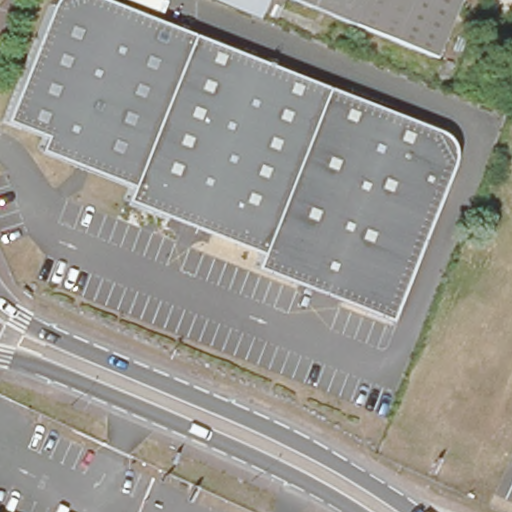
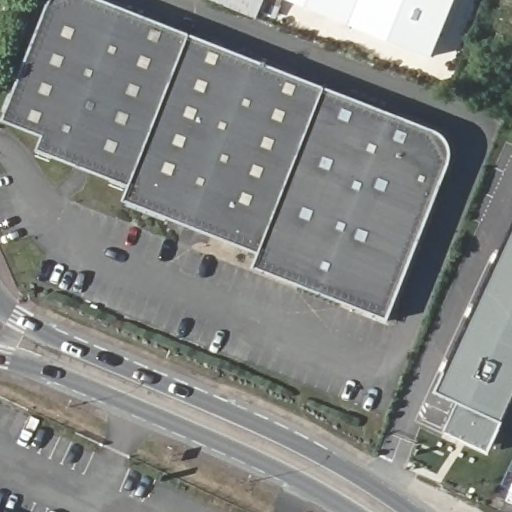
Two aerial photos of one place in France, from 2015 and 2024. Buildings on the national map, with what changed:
unchanged [(440,133),(444,136),(448,140),(450,145),(452,150),(453,156),(453,162),(452,169),(450,177),(392,321),(256,267),(261,255),(126,201),(131,188),(38,151),(43,138),(4,122),(50,6),(53,2),(55,0),(101,0),(433,130),(440,133)]
unchanged [(458,0),(434,61),(350,26),(286,0),(458,0)]
new [(441,394),(512,241),(512,417),(498,448),(495,454),(450,433),(452,427),(463,405),(441,394)]

